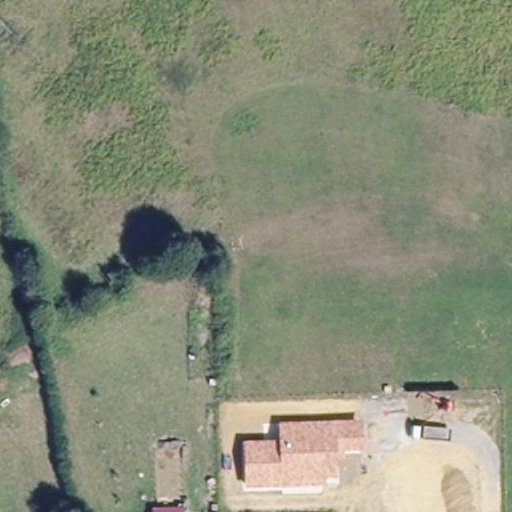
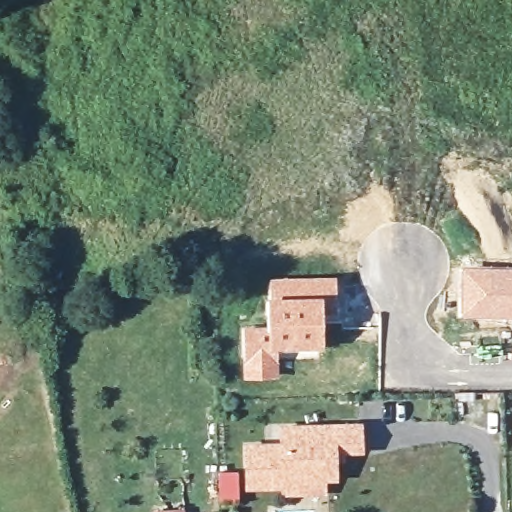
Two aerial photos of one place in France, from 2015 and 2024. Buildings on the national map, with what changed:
new [(458,263),(512,263),(512,319),(457,318),(458,263)]
new [(266,324),(267,276),(336,275),(336,294),(323,295),(324,346),(277,349),(278,378),(241,380),(240,325),(266,324)]
unchanged [(278,440),(277,423),(364,421),(365,454),(343,454),(344,465),(336,463),(336,480),(326,480),(326,487),(245,488),(243,440),(278,440)]

